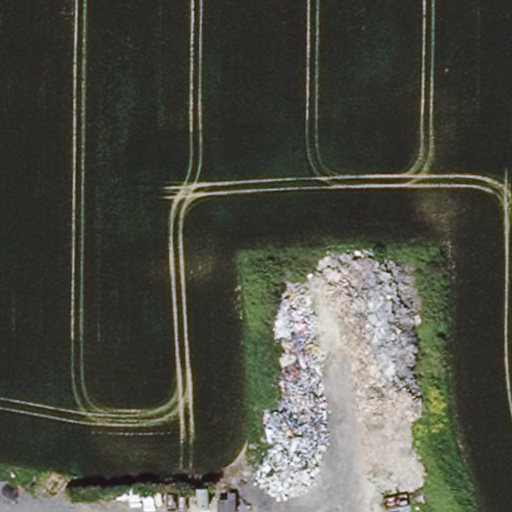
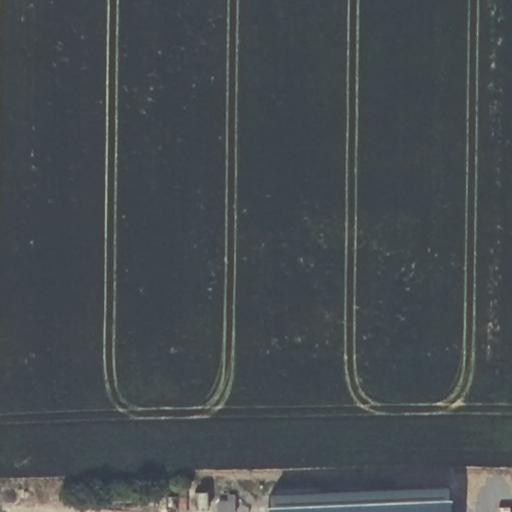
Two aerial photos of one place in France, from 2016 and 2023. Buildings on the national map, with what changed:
new [(271,494),(453,487),(453,512),(272,512),(271,494)]

